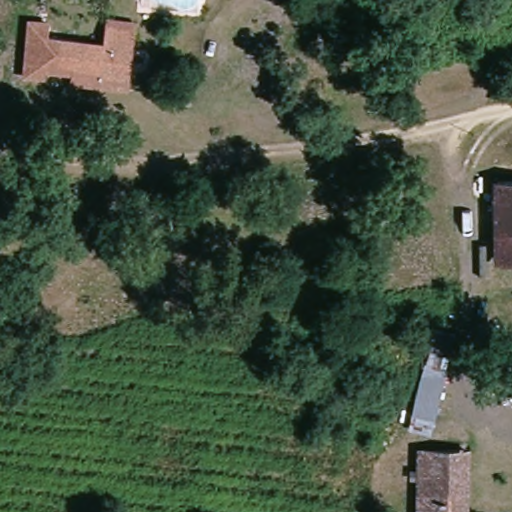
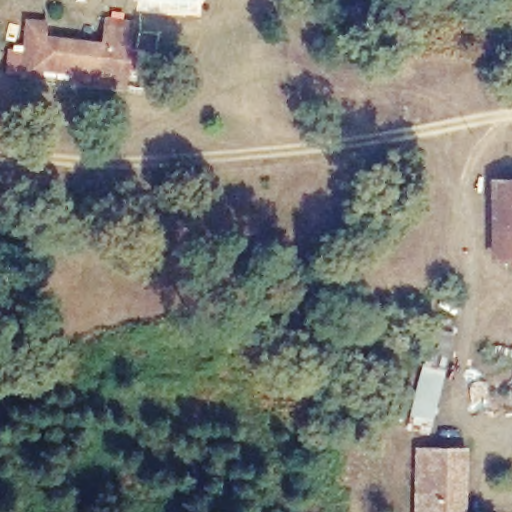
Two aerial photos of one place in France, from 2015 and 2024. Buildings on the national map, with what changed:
unchanged [(113,46),(114,33),(134,34),(136,34),(133,88),(130,88),(110,87),(111,72),(51,68),(50,81),(31,80),(35,26),(54,28),(53,42),(113,46)]
unchanged [(512,259),(502,259),(502,185),(512,185),(512,259)]
unchanged [(457,356),(438,422),(416,416),(433,351),(457,356)]
unchanged [(425,512),(426,451),(472,452),(471,512),(425,512)]

